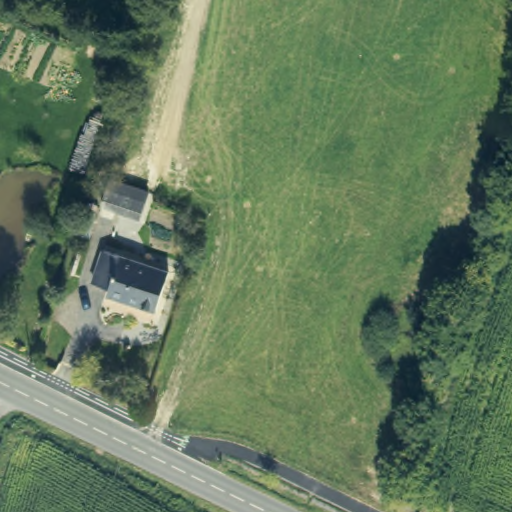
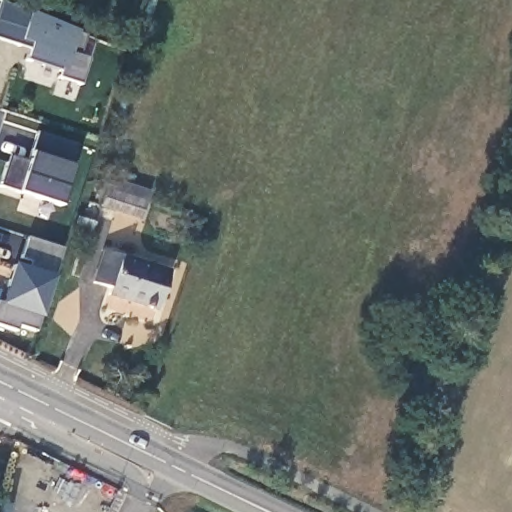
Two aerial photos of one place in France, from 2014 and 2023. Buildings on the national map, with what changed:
new [(0,42),(0,7),(2,2),(88,36),(80,58),(89,61),(81,88),(59,80),(60,73),(26,62),(32,45),(29,52),(20,49),(0,42)]
new [(81,146),(61,206),(0,187),(8,162),(26,169),(39,132),(81,146)]
unchanged [(149,194),(140,220),(103,208),(110,182),(149,194)]
new [(20,327),(19,332),(0,326),(0,302),(4,304),(16,267),(35,272),(38,264),(23,259),(30,238),(64,249),(39,333),(20,327)]
unchanged [(119,296),(105,292),(108,285),(93,280),(104,249),(160,268),(167,270),(155,308),(149,306),(119,296)]
new [(33,262),(38,264),(35,272),(30,271),(33,262)]
new [(5,512),(0,512),(0,505),(6,507),(5,512)]

